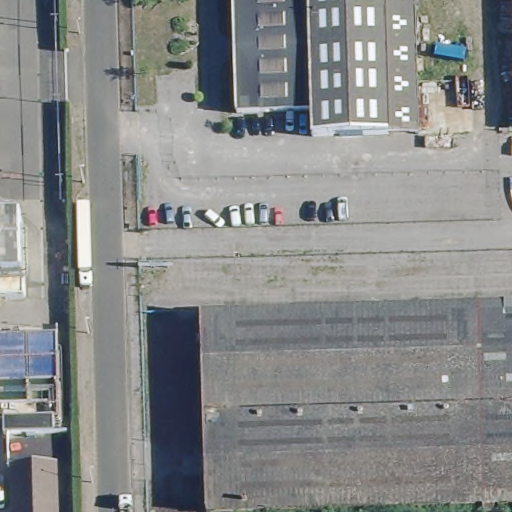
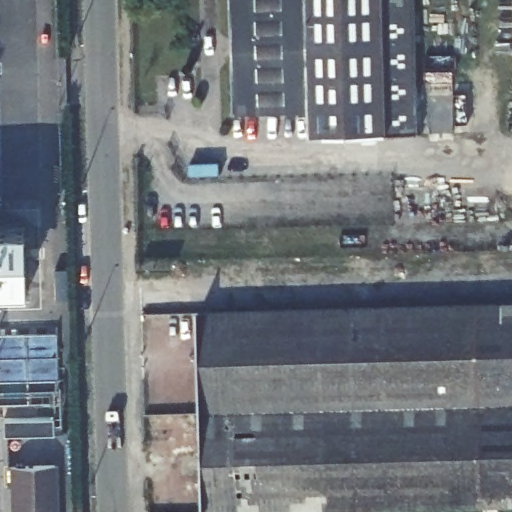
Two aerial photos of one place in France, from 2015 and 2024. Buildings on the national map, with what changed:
unchanged [(285,113),(235,114),(230,0),(280,0),(285,113)]
unchanged [(416,132),(311,135),(310,112),(285,113),(280,0),(412,0),(416,132)]
unchanged [(25,286),(0,288),(0,231),(22,231),(25,286)]
unchanged [(502,511),(502,512),(482,512),(481,506),(303,512),(205,512),(199,315),(493,306),(512,306),(512,511),(502,511)]
unchanged [(37,419),(37,435),(8,436),(7,420),(37,419)]
unchanged [(54,512),(12,512),(10,464),(52,462),(54,512)]

